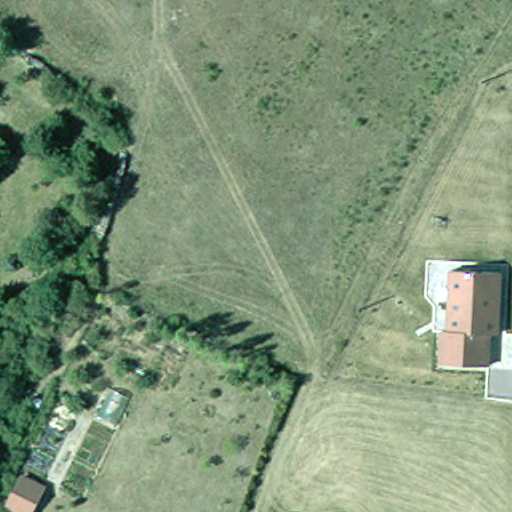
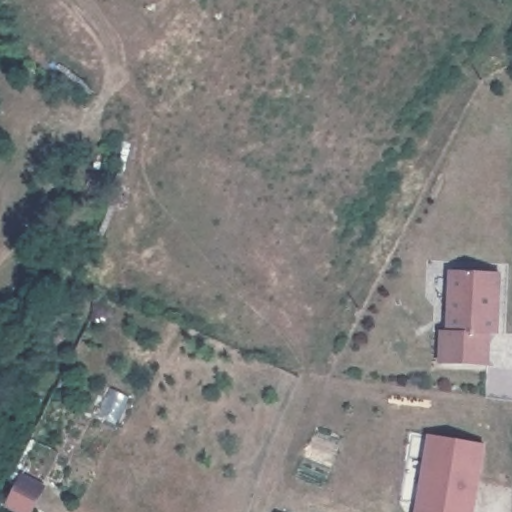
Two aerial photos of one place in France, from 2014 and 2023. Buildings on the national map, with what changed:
unchanged [(500,272),(498,333),(488,332),(487,365),(434,363),(436,331),(445,330),(447,270),(500,272)]
new [(427,435),(486,444),(474,512),(415,512),(427,435)]
unchanged [(20,471),(45,484),(30,512),(17,512),(4,505),(20,471)]

